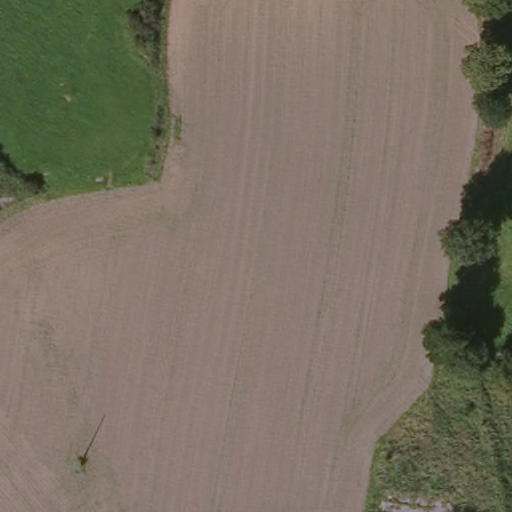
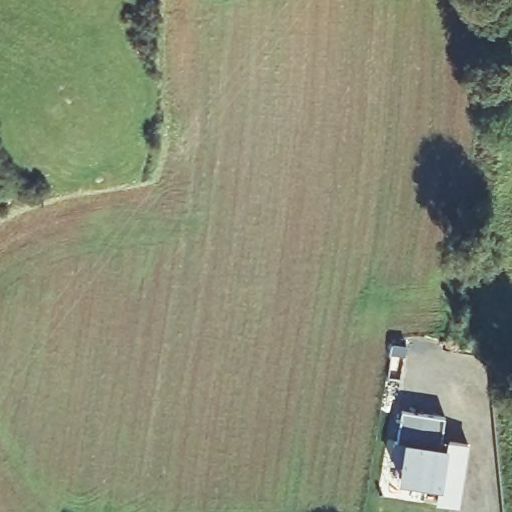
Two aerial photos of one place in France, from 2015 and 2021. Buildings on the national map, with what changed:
new [(437,503),(438,486),(399,479),(400,467),(389,464),(393,441),(396,442),(401,410),(445,419),(441,440),(469,446),(459,508),(437,503)]
demolished [(381,458),(456,469),(449,504),(374,498),(381,458)]

